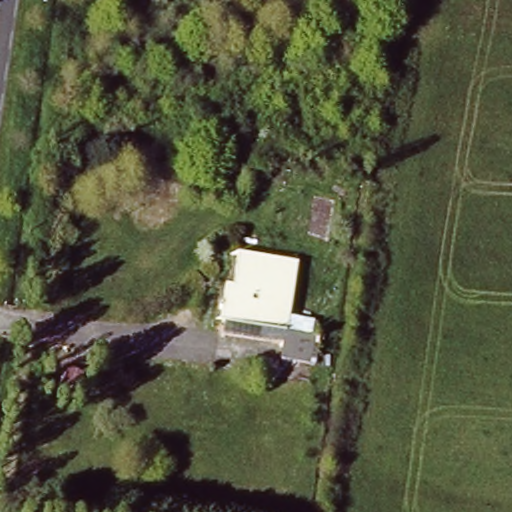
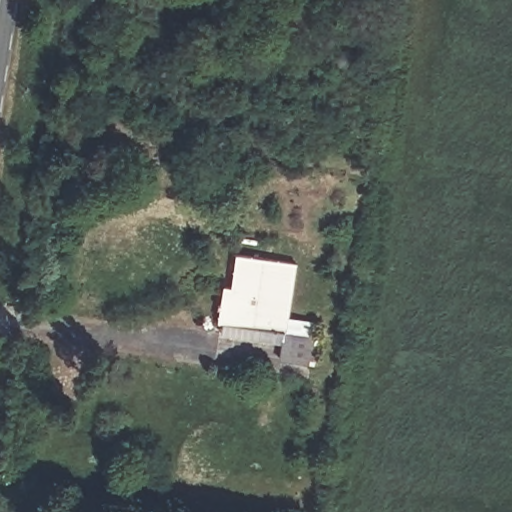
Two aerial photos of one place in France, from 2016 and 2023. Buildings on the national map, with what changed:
unchanged [(297,263),(290,316),(313,319),(310,335),(320,336),(315,365),(280,360),(284,338),(220,332),(220,322),(226,286),(235,287),(239,252),(297,263)]

